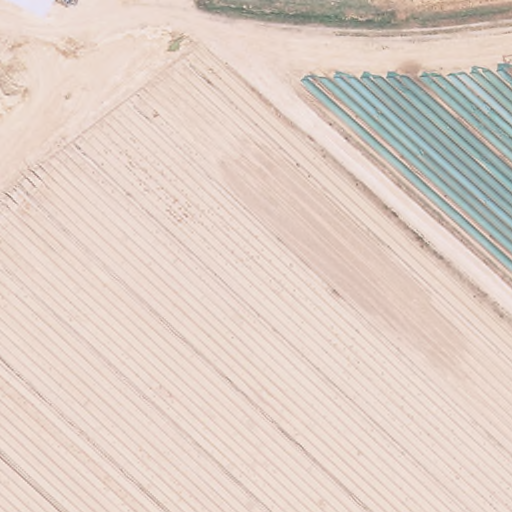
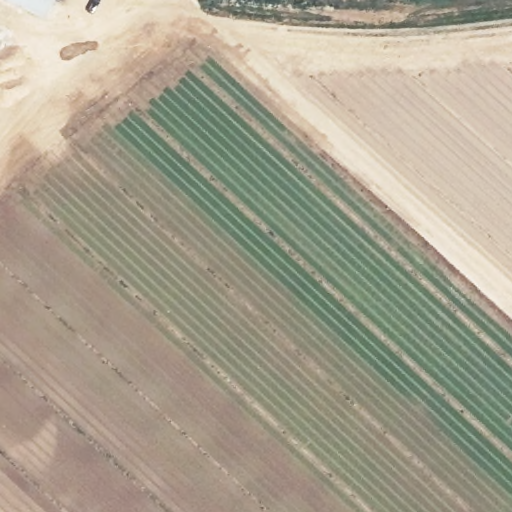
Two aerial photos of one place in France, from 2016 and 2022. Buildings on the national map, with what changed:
unchanged [(19,0),(46,0),(39,11),(19,0)]

